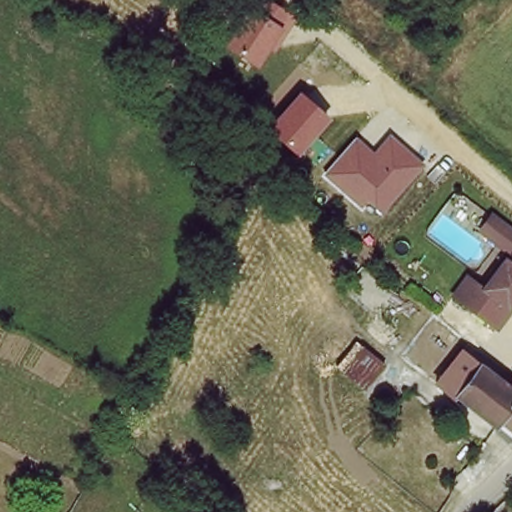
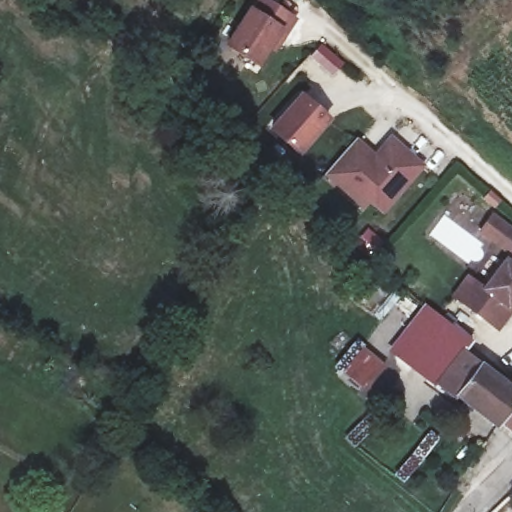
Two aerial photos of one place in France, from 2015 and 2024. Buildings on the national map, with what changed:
unchanged [(248,5),(256,11),(262,0),(269,0),(298,20),(276,53),(271,50),(260,69),(224,45),(248,5)]
unchanged [(301,155),(269,130),(300,93),(331,120),(301,155)]
unchanged [(383,214),(369,202),(362,209),(326,175),(357,137),(376,153),(391,136),(424,166),(383,214)]
unchanged [(509,248),(486,231),(495,217),(512,228),(512,250),(509,248)]
unchanged [(507,332),(460,301),(473,280),(493,293),(512,266),(512,324),(507,332)]
new [(431,387),(389,350),(428,304),(474,340),(464,350),(460,347),(437,377),(431,387)]
new [(364,389),(344,371),(341,375),(333,366),(358,338),(388,363),(364,389)]
unchanged [(437,377),(460,347),(506,382),(512,375),(512,426),(499,415),(494,421),(437,377)]
unchanged [(510,372),(512,370),(512,374),(510,372)]

